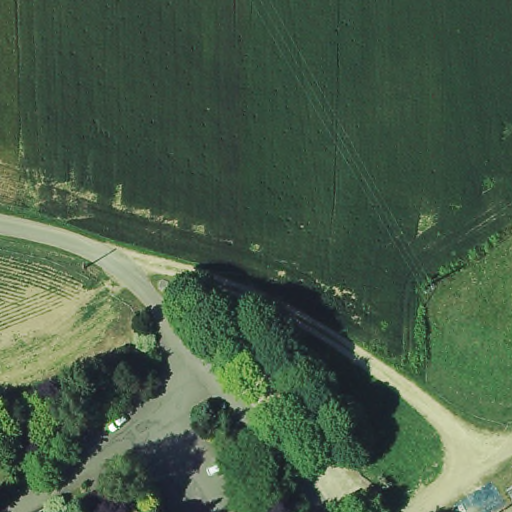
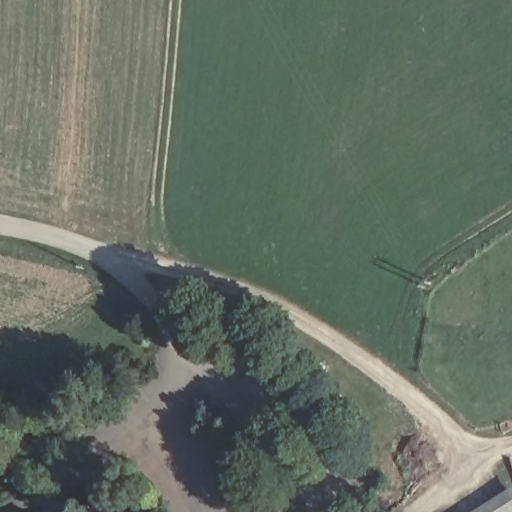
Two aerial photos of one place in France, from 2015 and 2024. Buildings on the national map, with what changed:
unchanged [(512,504),(512,512),(499,512),(512,504)]

